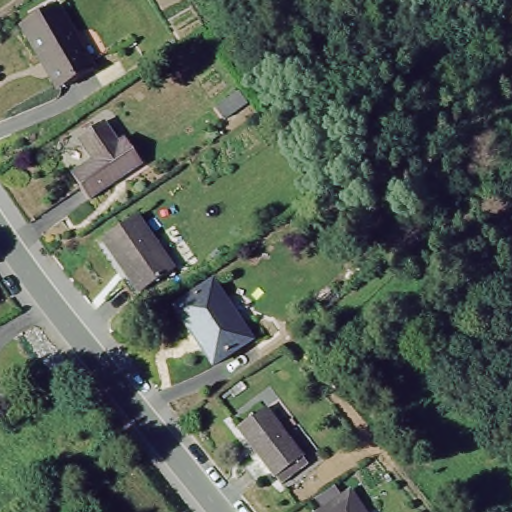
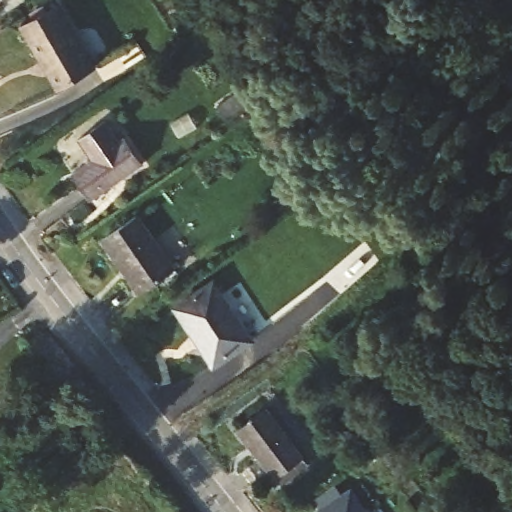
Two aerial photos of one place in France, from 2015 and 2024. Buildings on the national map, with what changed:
unchanged [(57,4),(94,69),(65,85),(47,54),(42,58),(22,24),(57,4)]
unchanged [(89,163),(75,142),(102,124),(115,143),(122,138),(144,165),(90,202),(70,175),(89,163)]
unchanged [(135,218),(172,273),(139,295),(104,241),(135,218)]
unchanged [(192,327),(177,304),(215,281),(252,339),(225,357),(215,363),(192,327)]
unchanged [(264,408),(302,457),(274,479),(235,432),(264,408)]
unchanged [(352,493),(362,512),(316,512),(352,493)]

